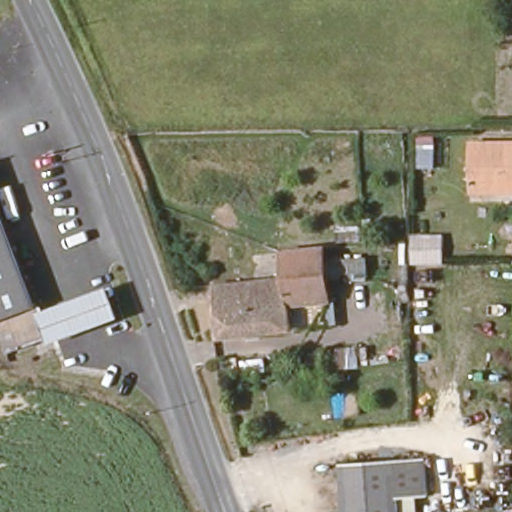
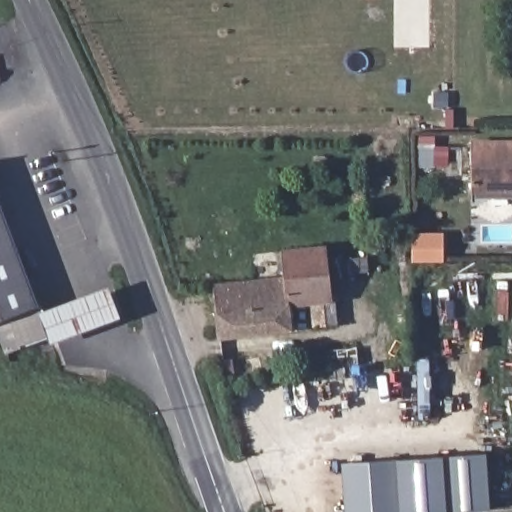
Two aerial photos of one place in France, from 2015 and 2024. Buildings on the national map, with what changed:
unchanged [(512,193),(469,193),(469,143),(512,143),(512,193)]
unchanged [(34,303),(100,281),(116,313),(43,339),(5,349),(0,332),(0,213),(34,303)]
unchanged [(287,272),(284,250),(323,245),(325,244),(332,296),(322,297),(326,323),(315,324),(312,298),(293,301),(296,325),(222,335),(215,281),(287,272)]
unchanged [(334,369),(331,347),(357,343),(359,366),(334,369)]
new [(398,494),(427,491),(424,455),(443,455),(486,452),(490,510),(453,512),(400,512),(398,494)]
unchanged [(424,455),(427,491),(398,494),(394,459),(424,455)]
unchanged [(338,466),(394,459),(398,494),(400,512),(344,512),(338,466)]

